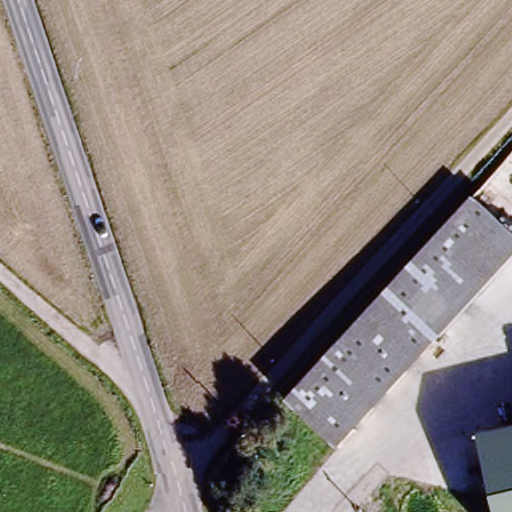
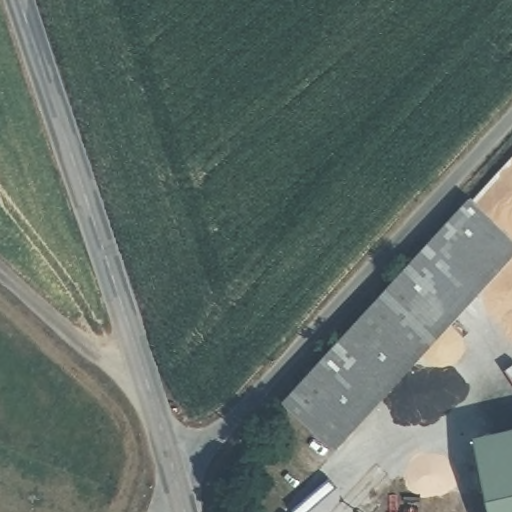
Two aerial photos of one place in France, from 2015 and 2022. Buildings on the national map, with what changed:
unchanged [(329,448),(277,400),(341,332),(466,196),(512,239),(512,250),(329,448)]
unchanged [(496,512),(477,436),(512,427),(512,512),(496,512)]

